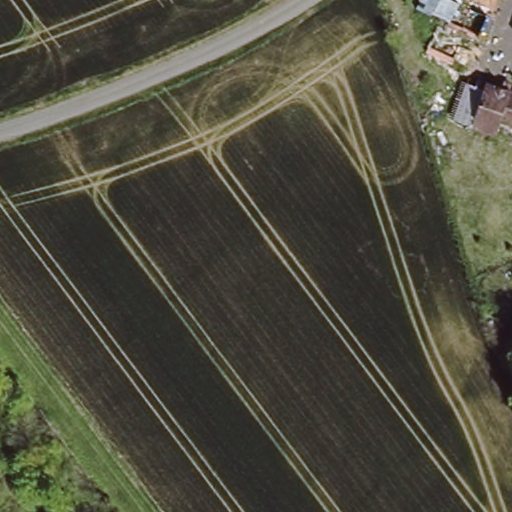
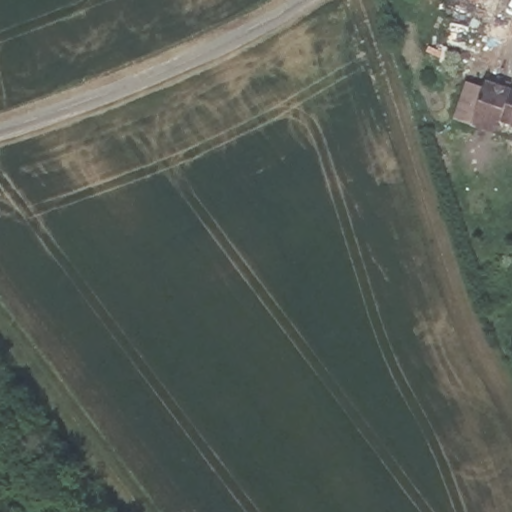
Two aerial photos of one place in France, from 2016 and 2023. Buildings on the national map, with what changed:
unchanged [(470,129),(480,98),(498,104),(502,89),(512,92),(512,135),(510,142),(470,129)]

